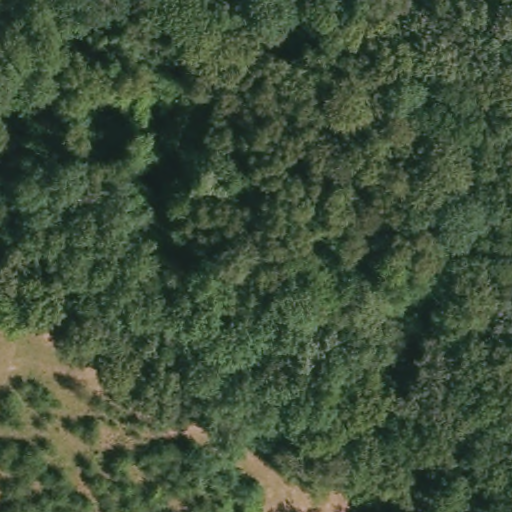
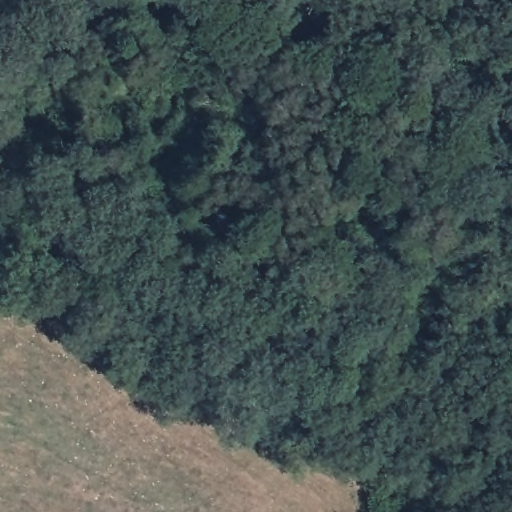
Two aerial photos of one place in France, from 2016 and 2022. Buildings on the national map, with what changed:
unchanged [(133,65),(138,71),(138,79),(135,83),(131,87),(123,88),(116,84),(113,80),(113,70),(117,66),(121,62),(129,62),(133,65)]

